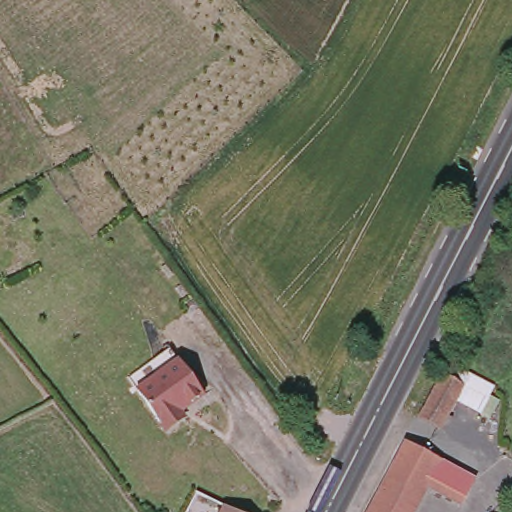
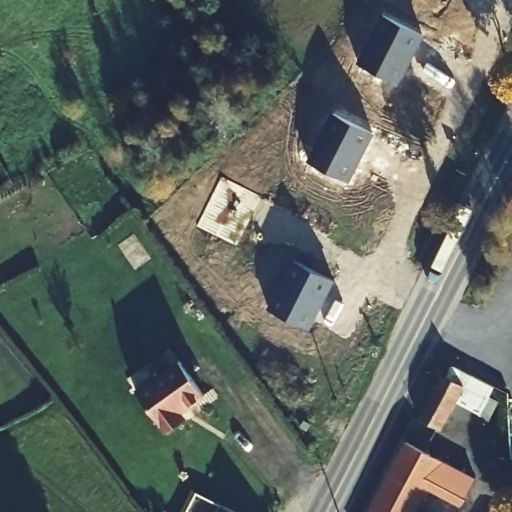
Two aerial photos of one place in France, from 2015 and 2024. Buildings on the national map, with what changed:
new [(425,35),(399,85),(357,63),(384,14),(425,35)]
new [(350,182),(307,161),(334,111),(375,132),(350,182)]
new [(262,195),(237,245),(197,226),(222,176),(262,195)]
new [(310,330),(267,308),(294,258),(336,280),(310,330)]
unchanged [(179,360),(203,395),(180,412),(182,415),(163,429),(136,391),(179,360)]
unchanged [(459,390),(442,381),(447,370),(489,392),(475,418),(450,405),(459,390)]
unchanged [(450,405),(435,435),(413,423),(437,379),(442,381),(459,390),(450,405)]
unchanged [(476,479),(462,505),(427,487),(413,512),(368,512),(406,441),(476,479)]
unchanged [(235,512),(222,512),(225,507),(235,512)]

